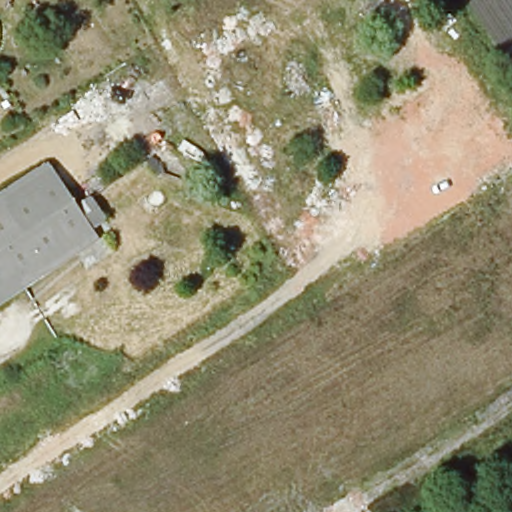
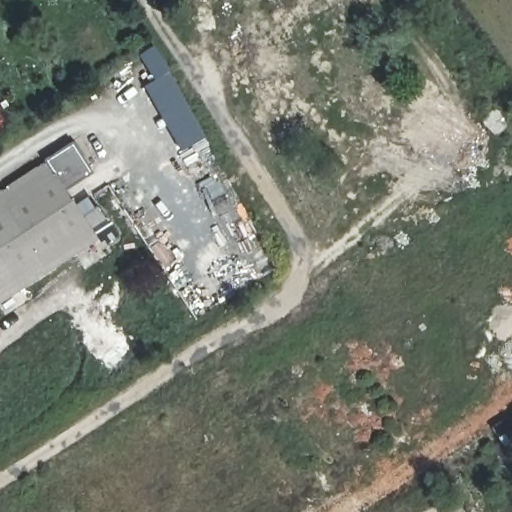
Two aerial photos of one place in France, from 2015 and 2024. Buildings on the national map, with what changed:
new [(139,54),(153,47),(205,137),(183,150),(144,86),(154,80),(139,54)]
unchanged [(104,238),(0,306),(0,195),(52,160),(104,238)]

